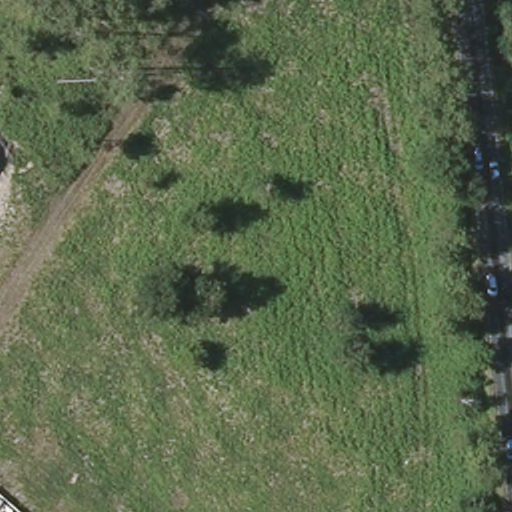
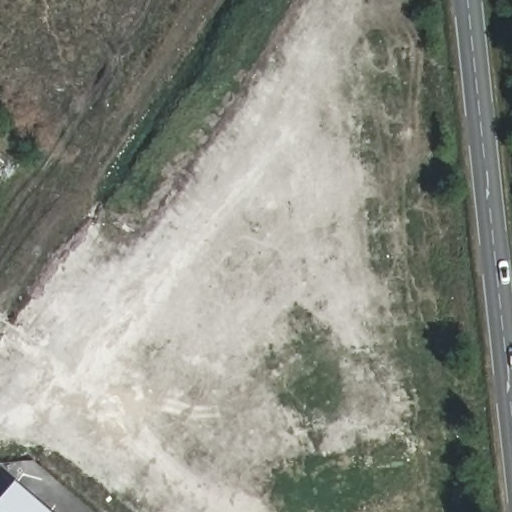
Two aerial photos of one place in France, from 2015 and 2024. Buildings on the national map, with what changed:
new [(0,502),(19,480),(56,512),(0,512),(0,502)]

